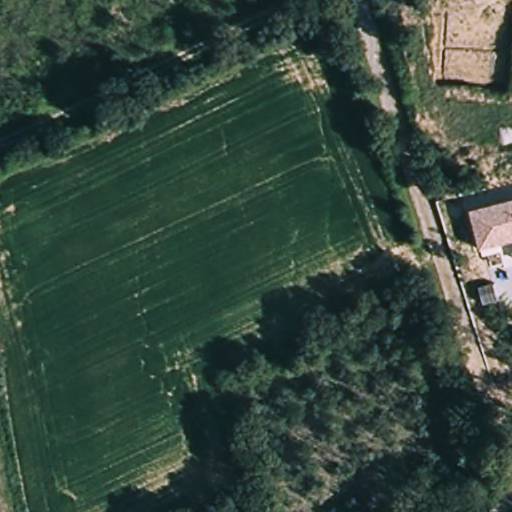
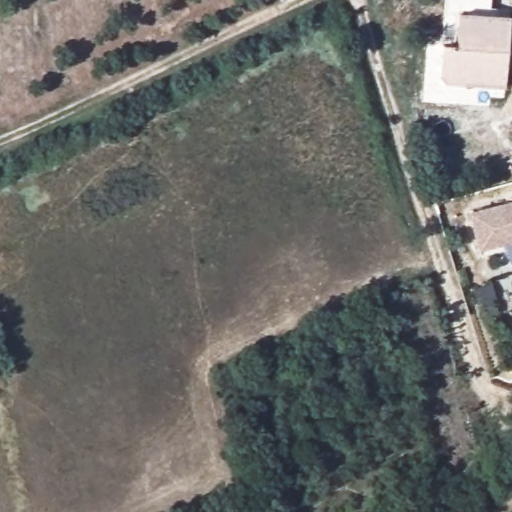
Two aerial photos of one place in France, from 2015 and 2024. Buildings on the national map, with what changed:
new [(449,47),(464,48),(468,16),(512,21),(512,74),(510,91),(452,85),(445,77),(449,47)]
unchanged [(481,251),(470,212),(512,200),(512,243),(481,251)]

